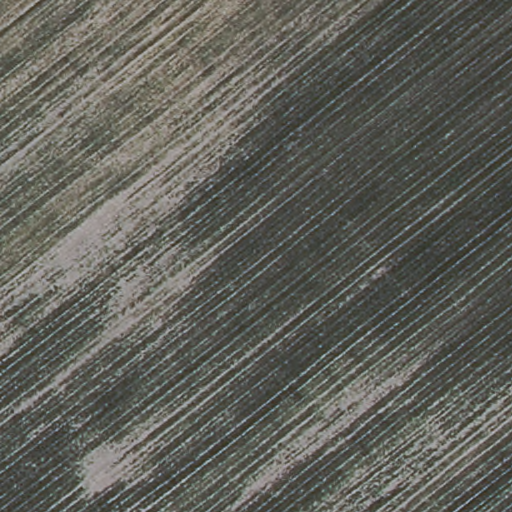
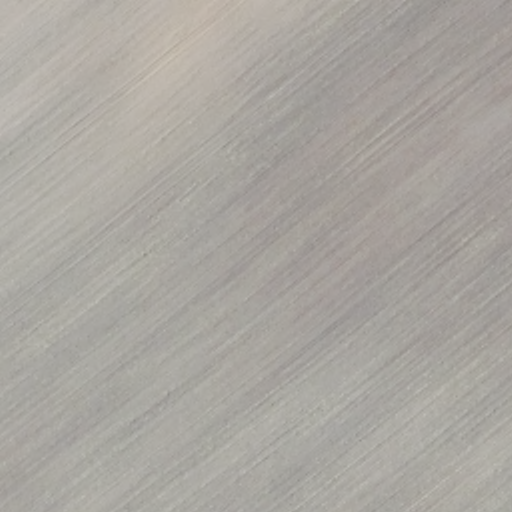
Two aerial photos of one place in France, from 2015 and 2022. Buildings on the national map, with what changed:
[]

